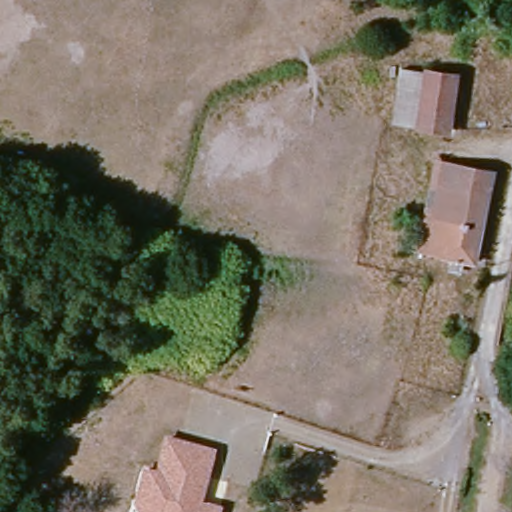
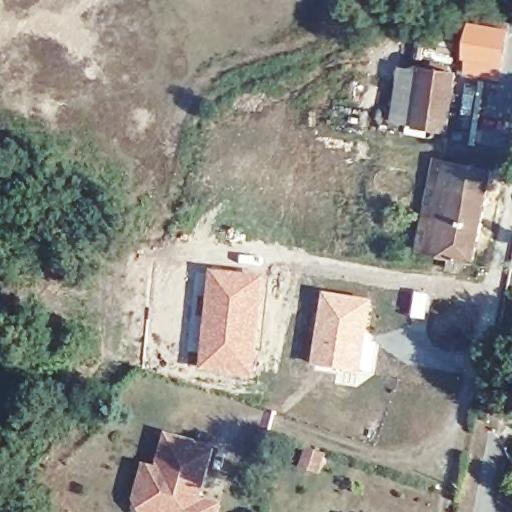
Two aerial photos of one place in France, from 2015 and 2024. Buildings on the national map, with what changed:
new [(470,20),(510,27),(500,80),(461,74),(470,20)]
unchanged [(399,127),(411,67),(437,72),(428,133),(399,127)]
unchanged [(438,252),(417,249),(434,160),(453,165),(483,171),(480,191),(466,256),(438,252)]
new [(202,316),(208,270),(265,276),(259,340),(254,378),(199,371),(202,316)]
new [(322,291),(372,300),(360,375),(310,367),(322,291)]
unchanged [(142,498),(146,483),(152,465),(165,470),(175,435),(220,450),(209,487),(201,485),(200,491),(205,500),(225,506),(223,512),(150,512),(142,498)]
new [(304,446),(325,454),(317,475),(296,468),(304,446)]

